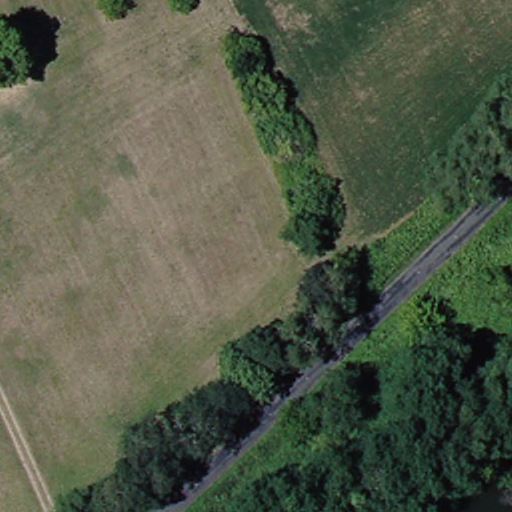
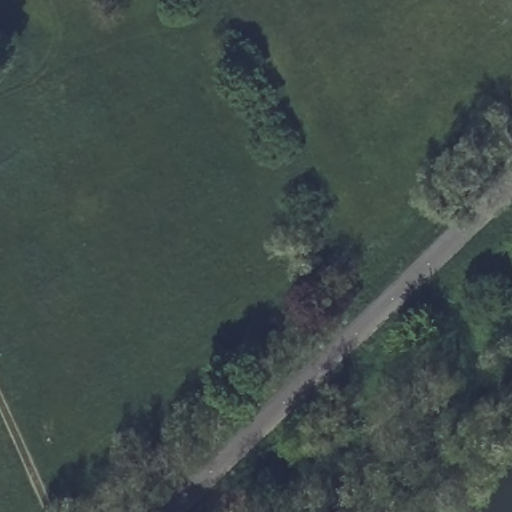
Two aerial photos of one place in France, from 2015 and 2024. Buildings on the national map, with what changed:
[]

